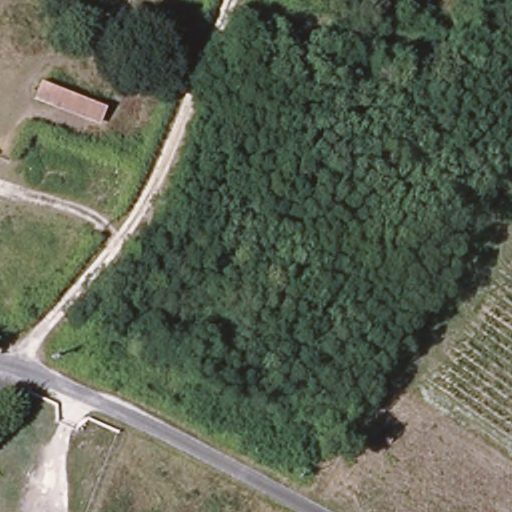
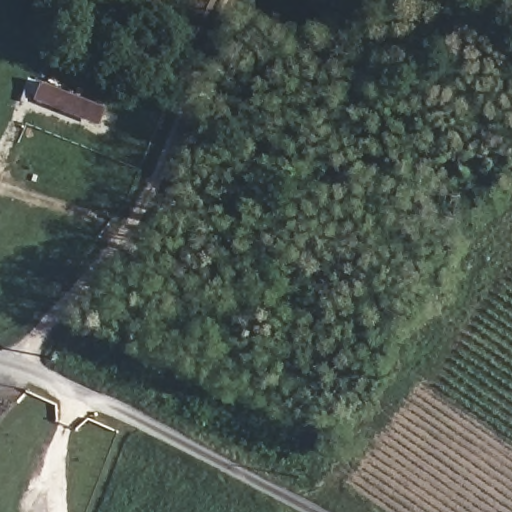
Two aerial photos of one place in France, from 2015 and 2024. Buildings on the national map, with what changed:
unchanged [(33,104),(40,87),(105,114),(99,129),(33,104)]

